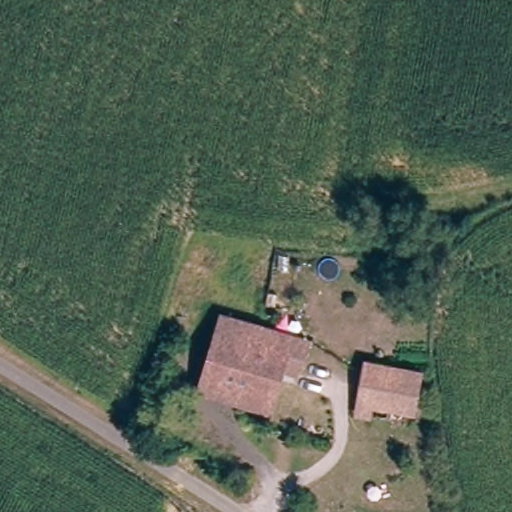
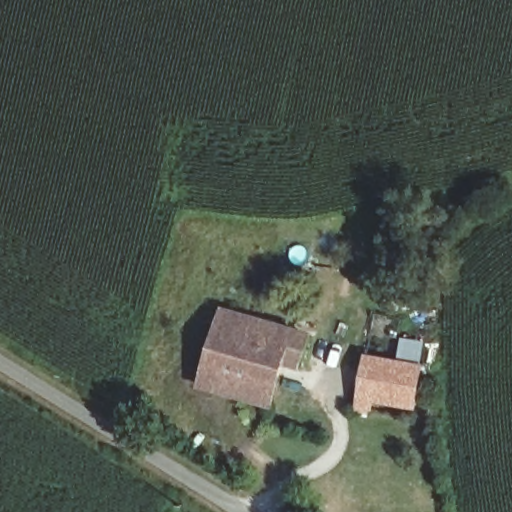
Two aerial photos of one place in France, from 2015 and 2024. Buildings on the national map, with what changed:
unchanged [(270,405),(203,386),(214,350),(226,312),(306,336),(297,366),(283,362),(282,365),(278,377),(270,405)]
unchanged [(410,418),(356,409),(366,356),(419,366),(410,418)]

